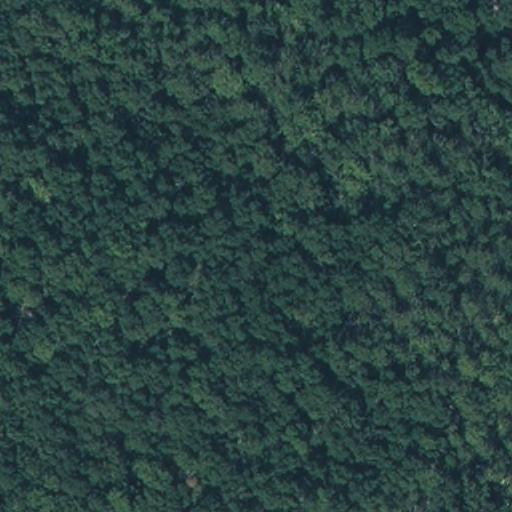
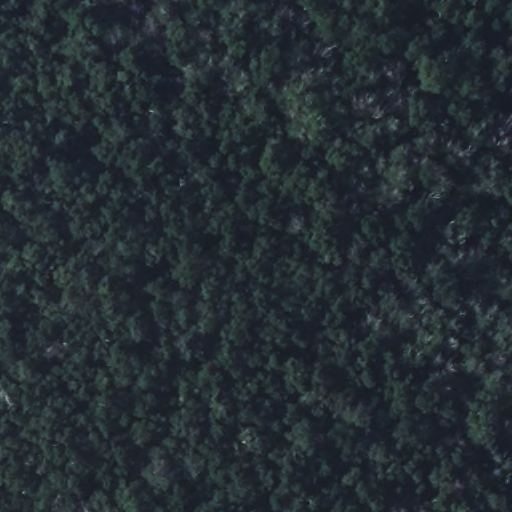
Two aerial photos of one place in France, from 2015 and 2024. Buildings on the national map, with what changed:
[]

